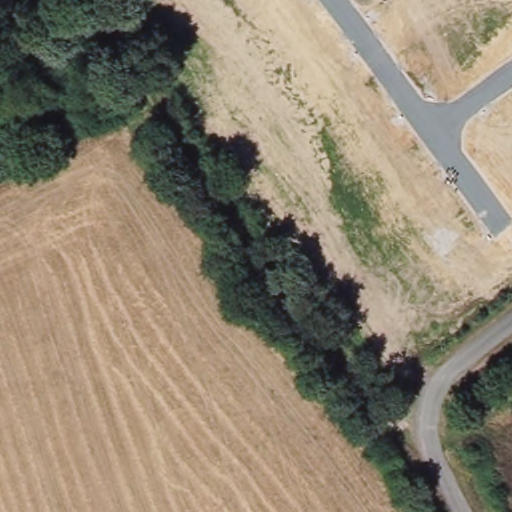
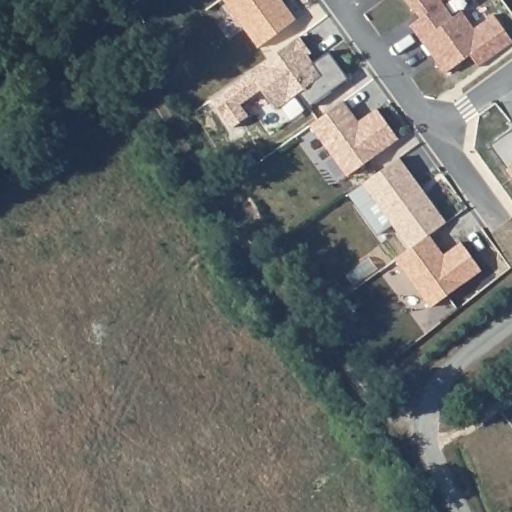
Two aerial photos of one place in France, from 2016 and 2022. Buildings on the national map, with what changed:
new [(295,20),(257,47),(222,0),(280,0),(295,20)]
new [(440,1),(452,17),(420,41),(409,26),(419,19),(406,0),(441,0),(440,1)]
new [(452,17),(460,11),(473,29),(492,15),(512,41),(512,42),(477,67),(469,55),(444,74),(420,41),(452,17)]
new [(310,52),(306,55),(311,63),(327,51),(347,79),(307,107),(297,94),(275,110),(247,73),(298,36),(310,52)]
new [(352,115),(357,122),(375,109),(397,139),(346,176),(309,125),(342,101),(352,115)]
new [(512,123),(512,177),(486,141),(511,122),(512,123)]
new [(398,157),(410,174),(406,176),(422,199),(426,196),(445,223),(428,235),(409,249),(362,184),(398,157)]
new [(409,249),(428,235),(443,255),(460,242),(481,270),(430,307),(395,260),(409,249)]

